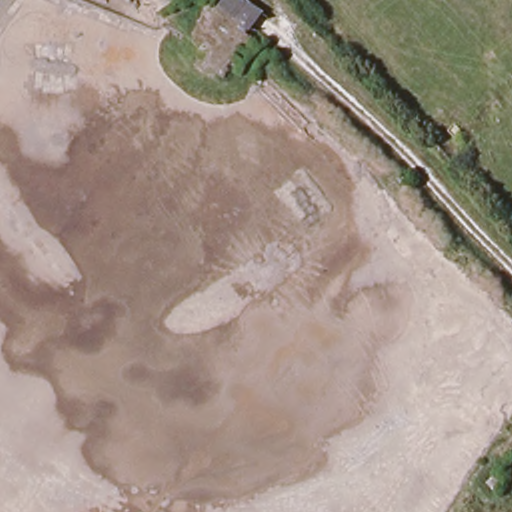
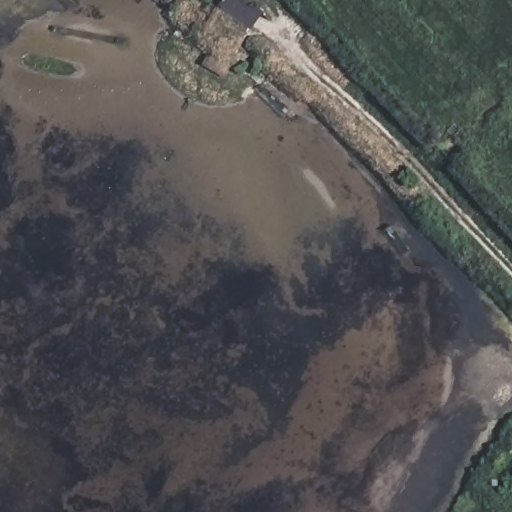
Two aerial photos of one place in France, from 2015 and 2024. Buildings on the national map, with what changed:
unchanged [(251,35),(227,67),(230,69),(224,78),(201,64),(209,53),(188,37),(210,1),(219,6),(223,0),(245,0),(249,0),(263,10),(247,31),(251,35)]

